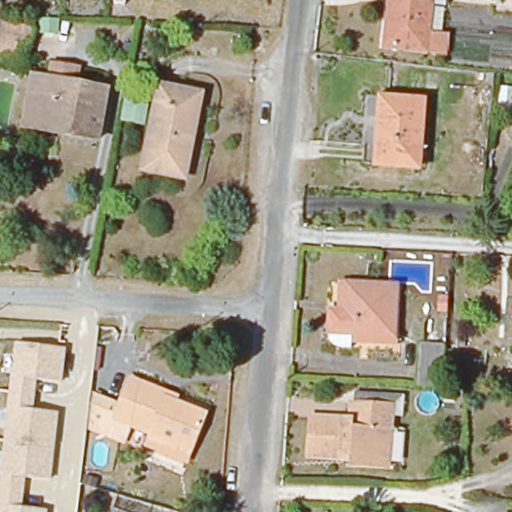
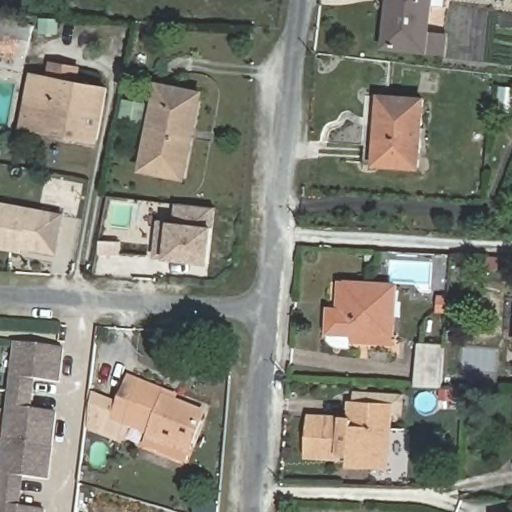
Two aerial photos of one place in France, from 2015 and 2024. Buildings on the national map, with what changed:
unchanged [(383,53),(387,9),(388,0),(432,0),(426,57),(383,53)]
unchanged [(0,23),(31,31),(22,62),(0,57),(0,23)]
unchanged [(26,122),(34,80),(109,94),(99,145),(73,140),(75,132),(26,122)]
unchanged [(207,92),(191,178),(148,169),(165,84),(207,92)]
unchanged [(421,171),(379,167),(385,100),(427,103),(421,171)]
unchanged [(131,102),(152,105),(149,124),(128,121),(131,102)]
new [(23,252),(0,249),(0,201),(66,213),(57,255),(24,248),(23,252)]
new [(215,225),(211,262),(166,259),(155,259),(159,221),(169,221),(177,222),(176,204),(218,207),(215,225)]
unchanged [(347,284),(397,287),(393,337),(367,335),(366,347),(342,346),(343,333),(347,284)]
unchanged [(0,473),(4,442),(16,342),(67,347),(62,382),(37,380),(33,410),(59,412),(54,447),(52,479),(26,476),(22,506),(47,509),(47,512),(0,512),(0,473)]
unchanged [(443,387),(415,386),(417,350),(417,345),(446,347),(446,351),(443,387)]
unchanged [(124,446),(88,432),(89,429),(92,400),(121,410),(132,383),(169,397),(167,402),(206,418),(191,455),(130,430),(124,446)]
unchanged [(363,472),(363,461),(353,461),(353,464),(313,463),(313,459),(315,426),(356,427),(357,410),(395,412),(392,462),(392,472),(363,472)]

